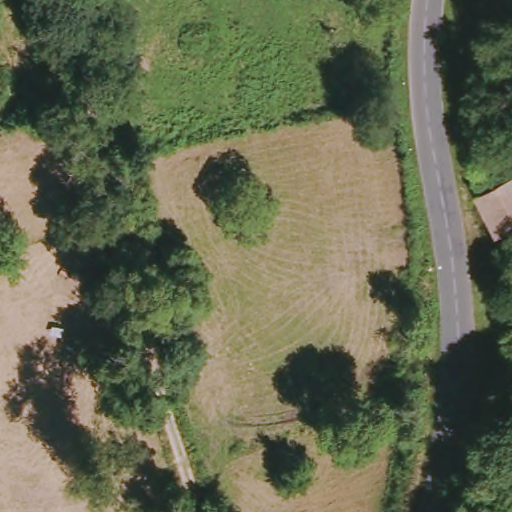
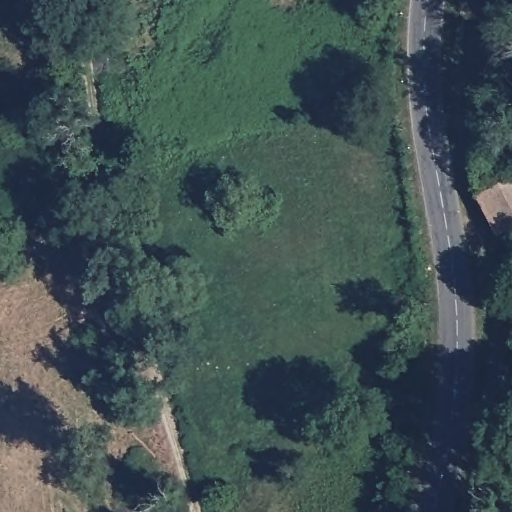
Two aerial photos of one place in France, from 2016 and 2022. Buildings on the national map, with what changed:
unchanged [(483,192),(512,179),(512,227),(500,233),(483,192)]

